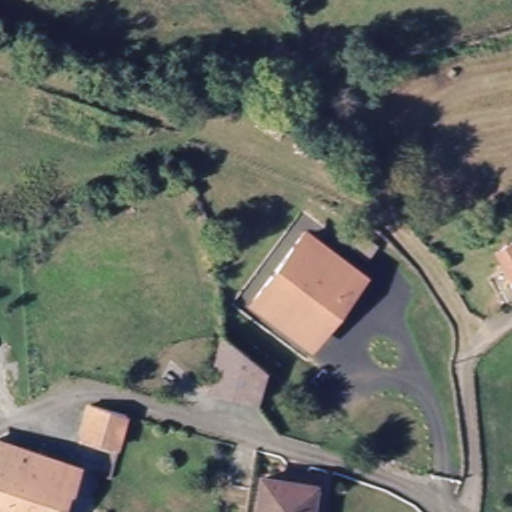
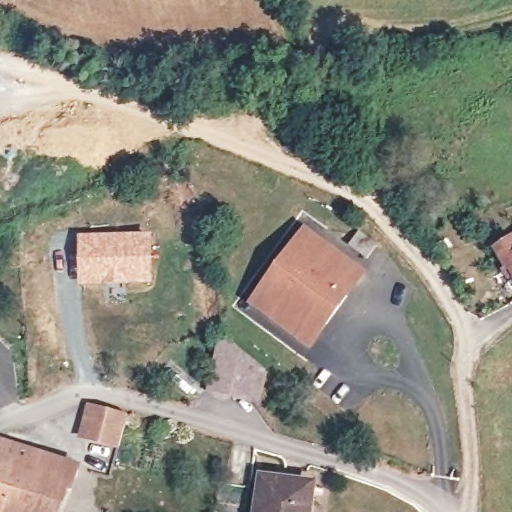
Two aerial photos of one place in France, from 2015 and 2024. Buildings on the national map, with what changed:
unchanged [(358,233),(376,246),(365,260),(348,245),(358,233)]
new [(152,234),(153,283),(78,284),(77,234),(152,234)]
unchanged [(323,256),(328,250),(360,276),(307,343),(275,316),(279,311),(256,292),(301,237),(323,256)]
unchanged [(501,276),(503,273),(495,260),(510,249),(511,250),(512,250),(512,280),(510,277),(506,281),(501,276)]
unchanged [(262,371),(251,402),(208,387),(219,333),(262,371)]
unchanged [(120,446),(97,440),(82,437),(90,407),(100,410),(127,416),(120,446)]
unchanged [(72,482),(66,481),(58,512),(0,512),(0,438),(79,458),(72,482)]
unchanged [(301,512),(255,512),(262,480),(306,490),(301,512)]

